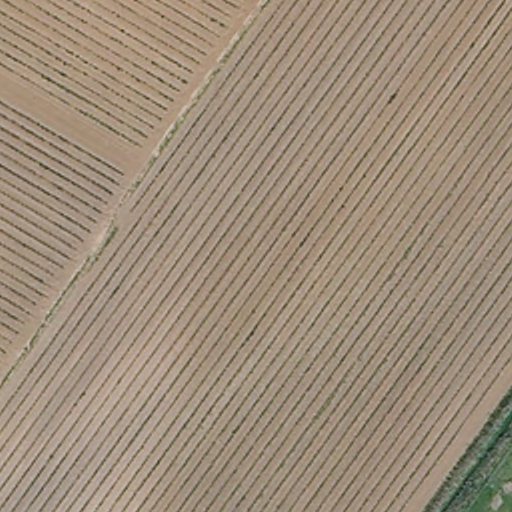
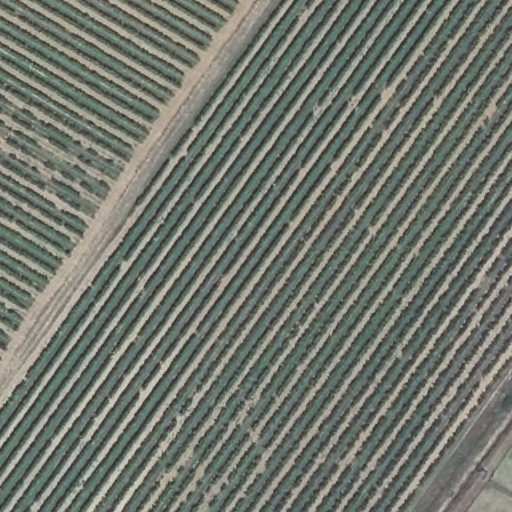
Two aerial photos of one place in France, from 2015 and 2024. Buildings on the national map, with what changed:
[]

